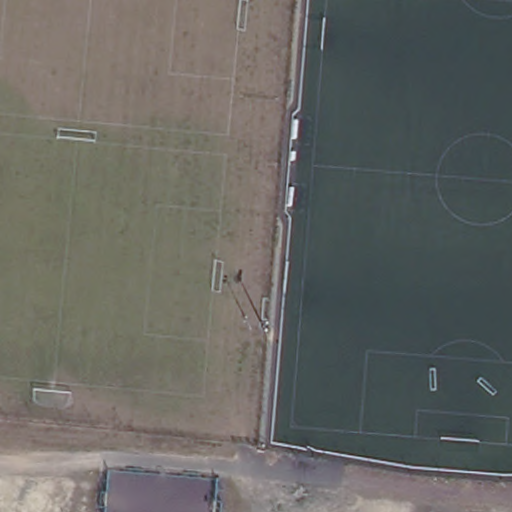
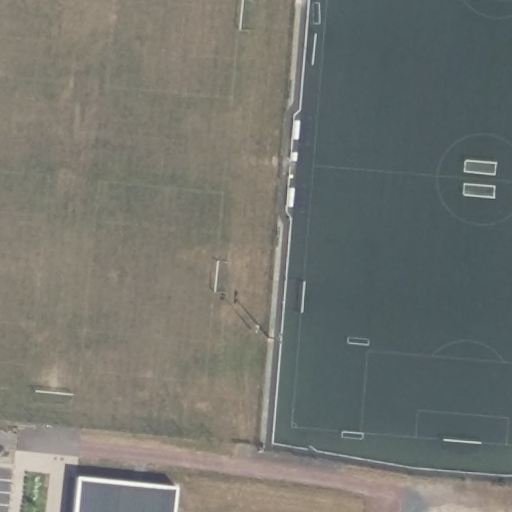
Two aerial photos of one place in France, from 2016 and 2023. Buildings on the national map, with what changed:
new [(175,481),(173,512),(75,512),(79,473),(175,481)]

